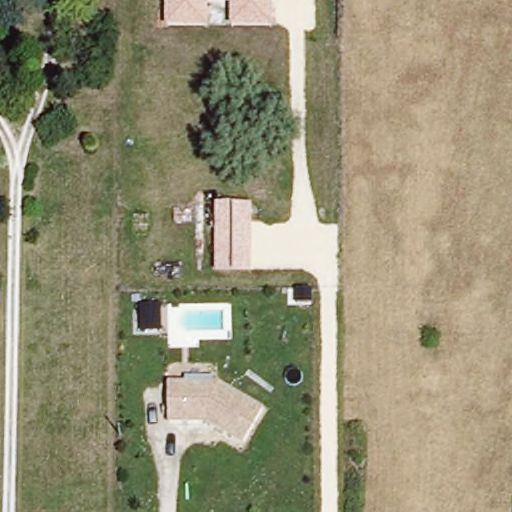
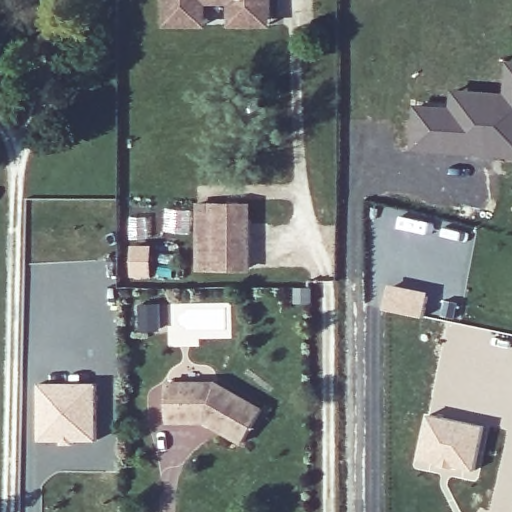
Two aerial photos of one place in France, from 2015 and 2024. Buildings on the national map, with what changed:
unchanged [(273,25),(230,26),(230,5),(209,5),(209,26),(166,27),(166,0),(273,0),(273,25)]
new [(413,105),(449,105),(450,90),(504,91),(505,62),(512,62),(512,161),(413,154),(413,105)]
unchanged [(251,271),(216,271),(215,203),(250,202),(251,271)]
new [(133,304),(159,304),(159,332),(133,333),(133,304)]
unchanged [(216,382),(264,410),(245,447),(209,428),(169,427),(169,386),(216,382)]
new [(38,387),(94,387),(94,444),(59,443),(38,443),(38,422),(38,387)]
new [(425,417),(479,431),(467,475),(414,461),(425,417)]

